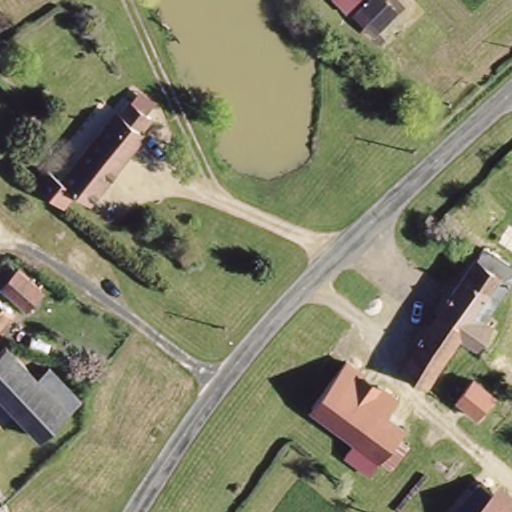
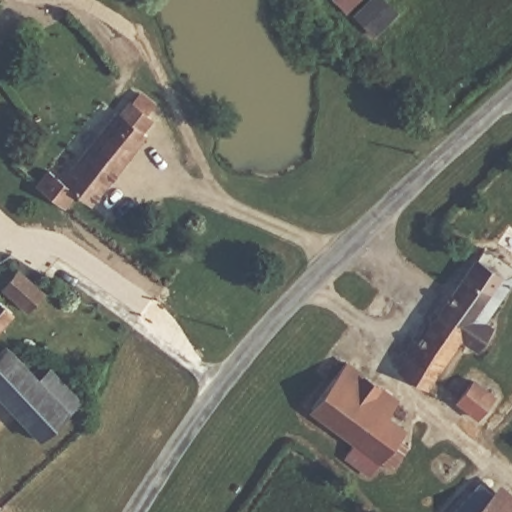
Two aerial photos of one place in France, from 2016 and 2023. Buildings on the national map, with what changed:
unchanged [(372,36),(352,15),(367,0),(383,0),(397,15),(372,36)]
unchanged [(80,161),(116,111),(135,125),(105,165),(114,172),(90,205),(64,184),(80,161)]
unchanged [(482,244),(512,272),(512,284),(507,290),(437,393),(397,368),(473,257),(482,244)]
unchanged [(25,311),(0,286),(0,275),(13,262),(42,294),(25,311)]
unchanged [(0,311),(7,317),(0,326),(0,311)]
unchanged [(64,416),(36,440),(0,396),(0,352),(6,347),(64,416)]
unchanged [(308,410),(345,356),(397,400),(385,415),(432,452),(423,462),(400,444),(382,465),(308,410)]
unchanged [(472,378),(499,397),(489,408),(474,426),(450,410),(472,378)]
unchanged [(512,495),(512,512),(449,512),(477,481),(488,492),(499,483),(512,495)]

